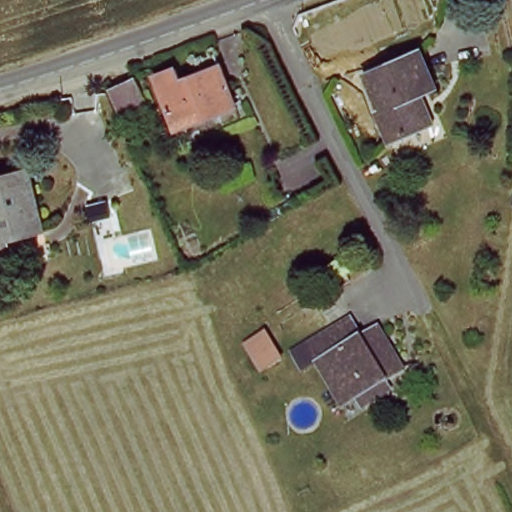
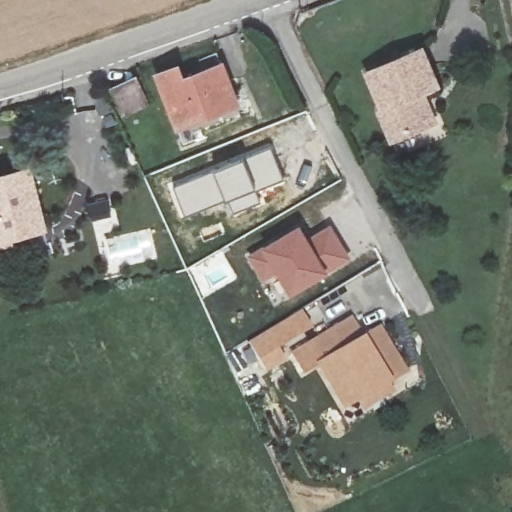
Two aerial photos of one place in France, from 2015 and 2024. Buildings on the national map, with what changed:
unchanged [(387,105),(371,67),(415,47),(433,86),(411,95),(425,125),(391,141),(377,107),(387,105)]
unchanged [(172,61),(180,81),(213,66),(230,103),(177,129),(153,69),(172,61)]
unchanged [(113,75),(135,65),(152,98),(128,109),(113,75)]
new [(271,146),(284,182),(259,190),(264,202),(232,215),(225,200),(191,212),(188,206),(182,207),(173,186),(271,146)]
unchanged [(5,204),(2,192),(35,183),(47,236),(18,243),(20,250),(0,255),(0,205),(5,204)]
new [(300,222),(308,235),(332,222),(353,260),(288,297),(276,278),(264,286),(246,256),(300,222)]
unchanged [(362,407),(357,397),(343,405),(320,361),(319,358),(304,367),(294,348),(353,315),(364,336),(381,326),(405,371),(386,382),(391,392),(362,407)]
unchanged [(270,362),(263,366),(248,339),(257,334),(268,327),(283,355),(270,362)]

